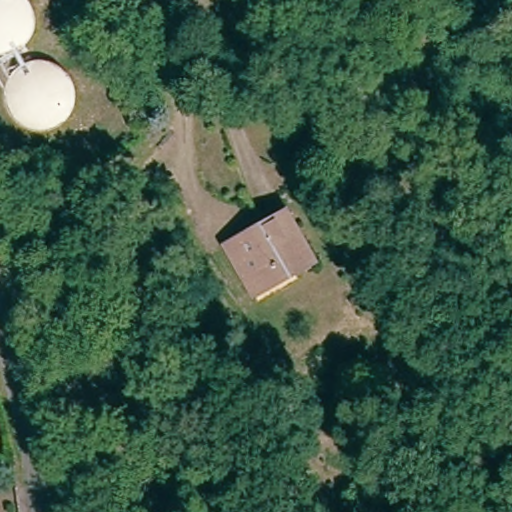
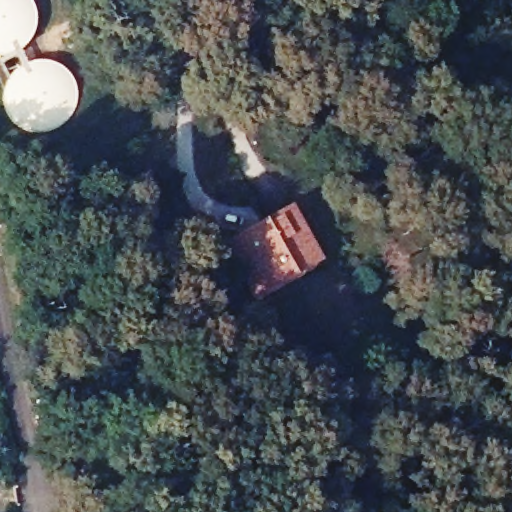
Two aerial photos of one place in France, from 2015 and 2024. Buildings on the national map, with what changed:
unchanged [(292,206),(325,259),(258,299),(227,246),(292,206)]

